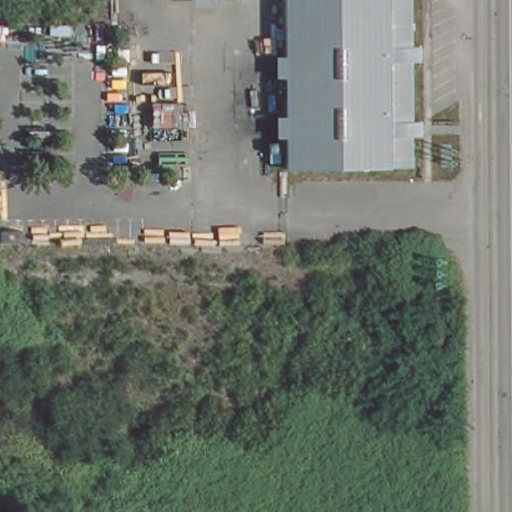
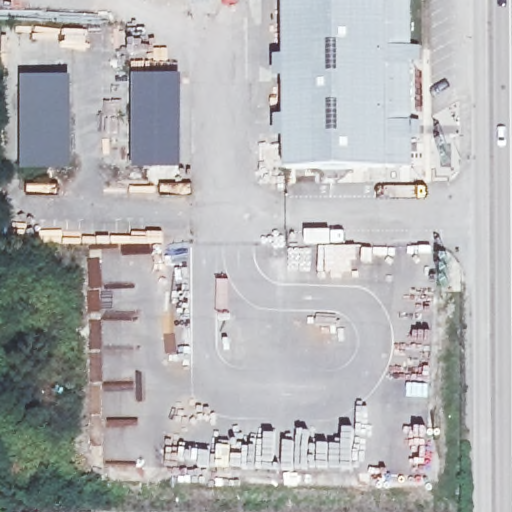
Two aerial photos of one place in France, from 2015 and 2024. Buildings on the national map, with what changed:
unchanged [(148,0),(237,0),(236,1),(148,0)]
unchanged [(285,171),(286,0),(413,0),(412,172),(285,171)]
new [(71,76),(70,169),(22,172),(21,75),(71,76)]
new [(133,76),(181,75),(182,170),(135,170),(133,76)]

